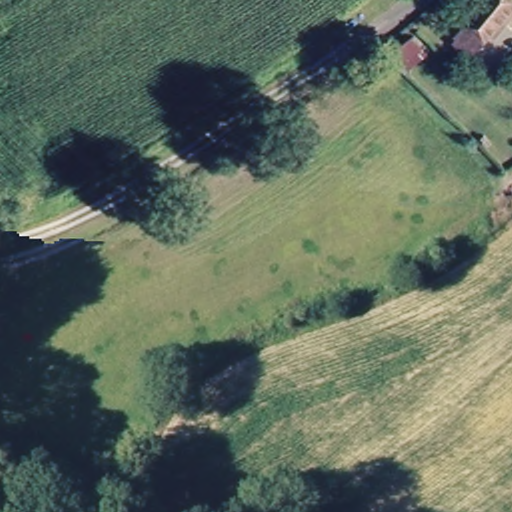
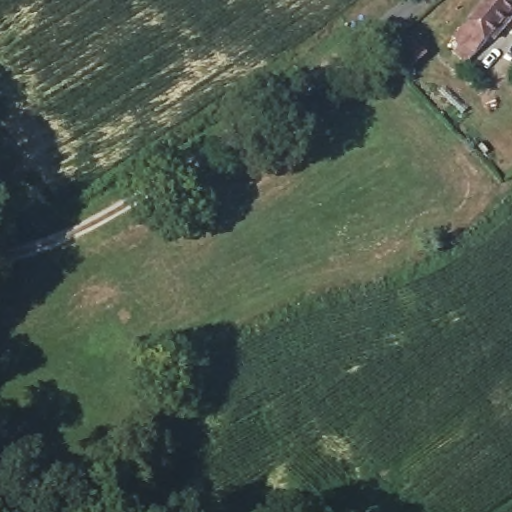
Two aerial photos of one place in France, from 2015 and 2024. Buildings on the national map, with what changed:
unchanged [(455,54),(460,46),(452,39),(485,0),(512,0),(512,9),(467,63),(455,54)]

